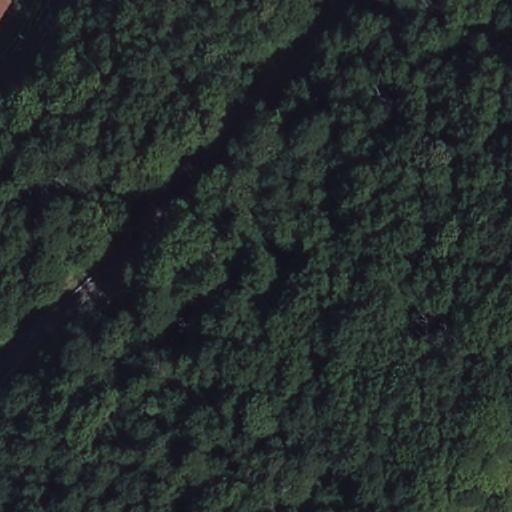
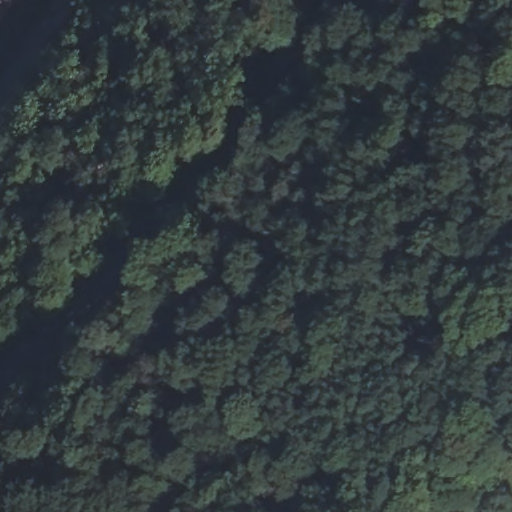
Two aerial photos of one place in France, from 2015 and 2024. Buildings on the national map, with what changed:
unchanged [(0,15),(0,0),(7,0),(0,15)]

